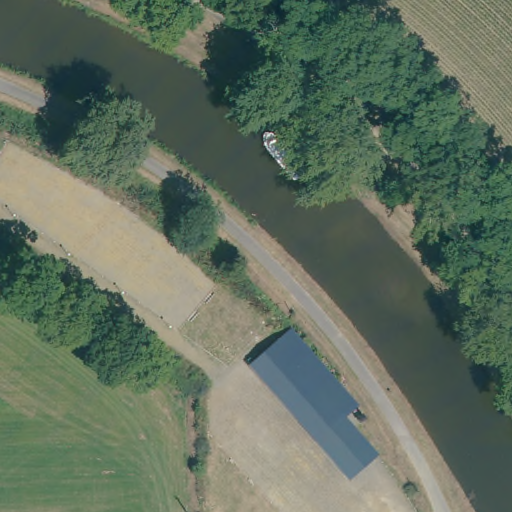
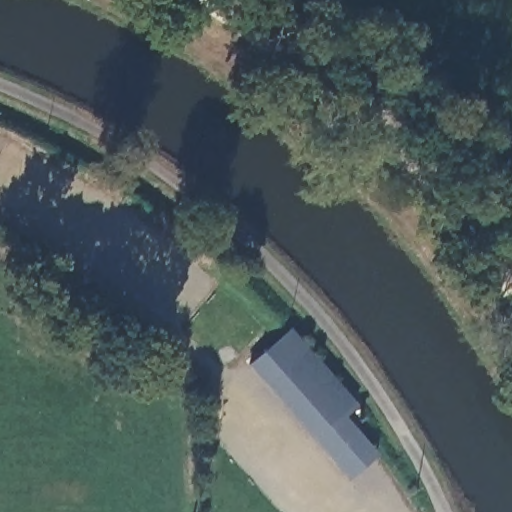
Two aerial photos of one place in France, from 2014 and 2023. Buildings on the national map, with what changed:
unchanged [(291,322),(354,393),(344,401),(386,447),(357,477),(244,365),(291,322)]

